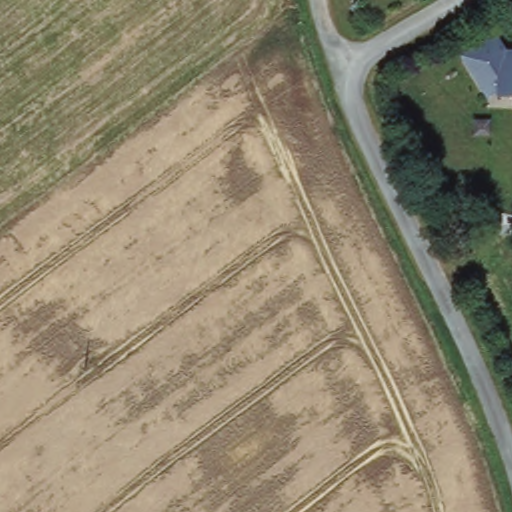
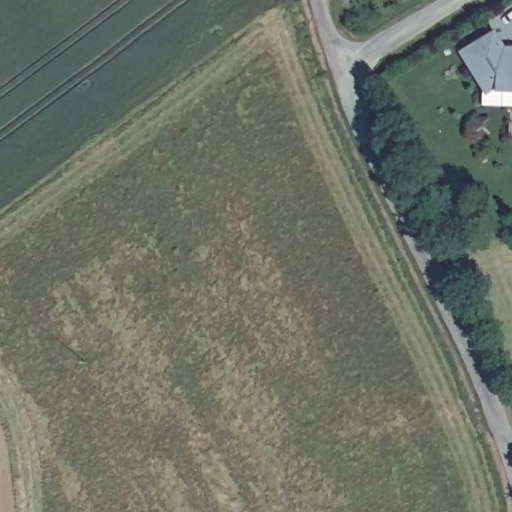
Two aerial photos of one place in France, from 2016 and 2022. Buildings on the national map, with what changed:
unchanged [(461,51),(497,30),(507,47),(512,48),(512,93),(494,92),(487,96),(461,51)]

